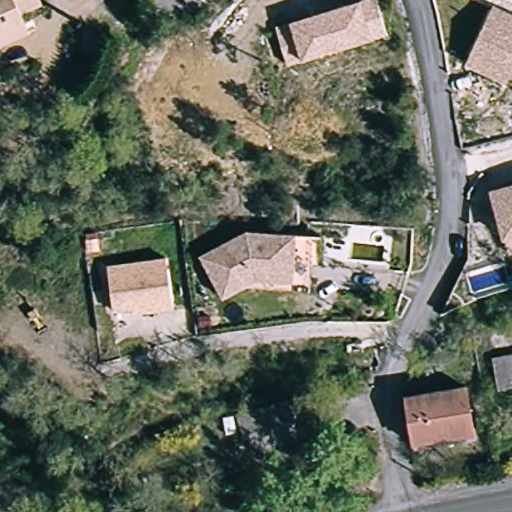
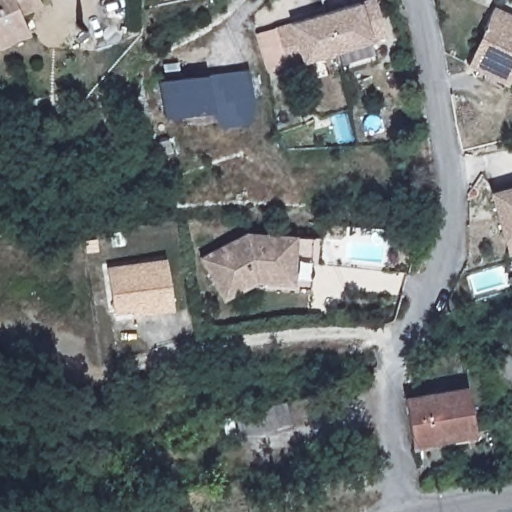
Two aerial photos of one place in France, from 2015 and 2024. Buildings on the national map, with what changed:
unchanged [(0,0),(43,0),(43,1),(19,12),(23,21),(29,33),(0,46),(0,0)]
unchanged [(290,24),(362,2),(367,0),(377,0),(387,36),(373,40),(302,62),(287,66),(267,72),(256,34),(275,28),(290,24)]
unchanged [(474,50),(493,7),(512,16),(512,75),(508,73),(507,79),(467,62),(474,50)]
new [(158,82),(208,74),(248,69),(253,104),(247,122),(219,126),(209,111),(164,117),(158,82)]
unchanged [(507,239),(493,189),(510,185),(512,184),(512,237),(507,239)]
unchanged [(311,239),(306,293),(237,287),(218,295),(199,254),(244,233),(311,239)]
unchanged [(166,260),(170,312),(136,315),(137,309),(110,312),(105,268),(166,260)]
unchanged [(487,331),(512,325),(512,390),(500,392),(487,331)]
unchanged [(472,434),(419,446),(409,404),(462,391),(472,434)]
unchanged [(292,423),(245,438),(239,417),(285,402),(292,423)]

